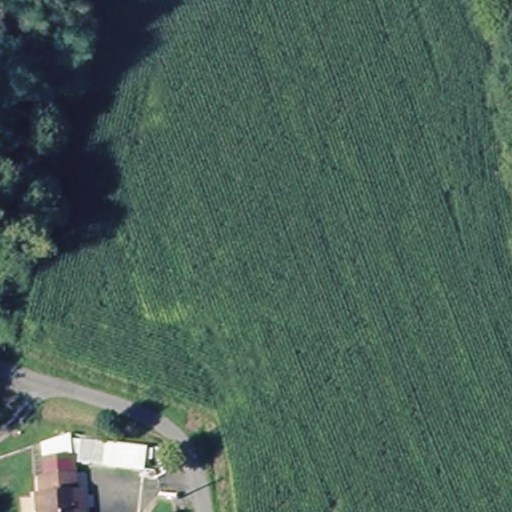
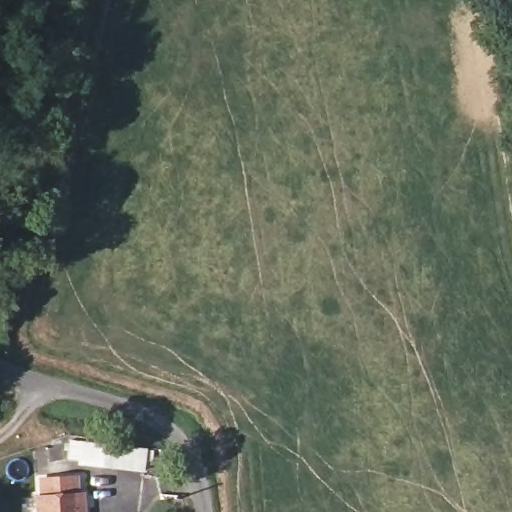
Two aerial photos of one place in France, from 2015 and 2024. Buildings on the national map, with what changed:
unchanged [(43,476),(40,444),(71,435),(148,446),(146,473),(76,463),(76,476),(43,476)]
unchanged [(43,476),(76,476),(77,493),(84,493),(86,512),(35,512),(34,497),(43,495),(43,476)]

